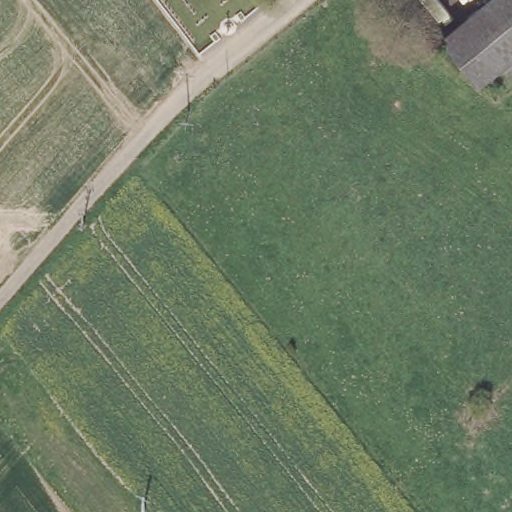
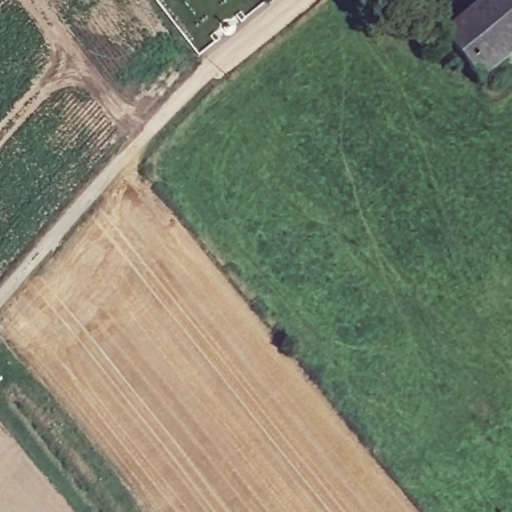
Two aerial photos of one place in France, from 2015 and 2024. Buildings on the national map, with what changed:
unchanged [(512,76),(505,83),(482,83),(443,37),(487,0),(512,0),(512,76)]

